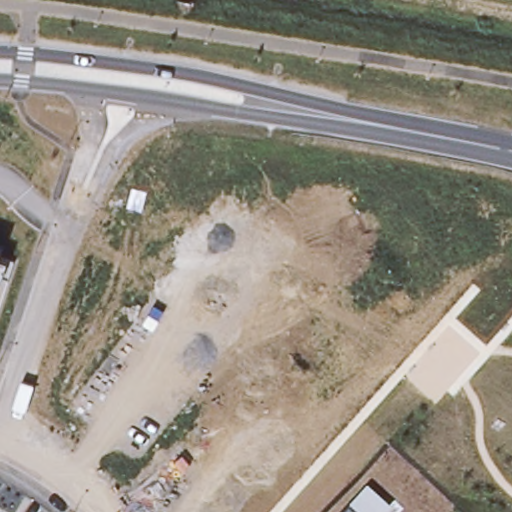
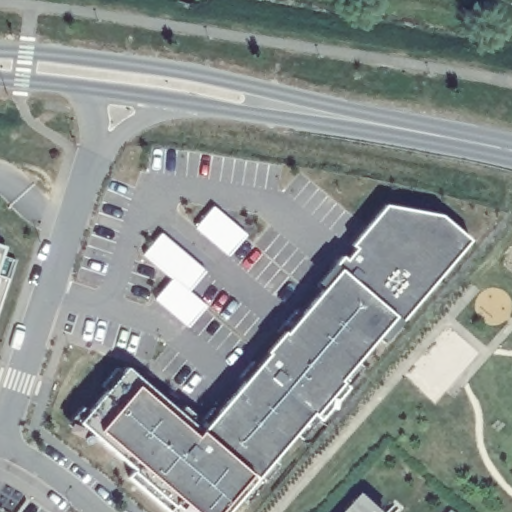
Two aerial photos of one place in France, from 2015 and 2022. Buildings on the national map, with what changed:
new [(178,506),(172,512),(168,512),(127,479),(133,472),(94,440),(88,445),(66,426),(84,407),(88,413),(106,395),(98,387),(115,367),(121,373),(128,367),(146,382),(141,388),(196,436),(201,430),(322,291),(316,285),(341,257),(346,261),(357,249),(350,245),(384,206),(441,216),(470,242),(383,342),(376,338),(339,382),(343,384),(348,388),(321,421),(316,417),(313,413),(256,480),(228,512),(185,512),(178,506)]
new [(194,227),(213,206),(247,235),(227,256),(194,227)]
new [(154,300),(173,279),(143,255),(161,235),(205,272),(188,291),(206,306),(188,327),(154,300)]
unchanged [(1,256),(9,259),(3,277),(0,275),(0,246),(3,247),(1,256)]
unchanged [(366,497),(383,512),(353,512),(366,497)]

